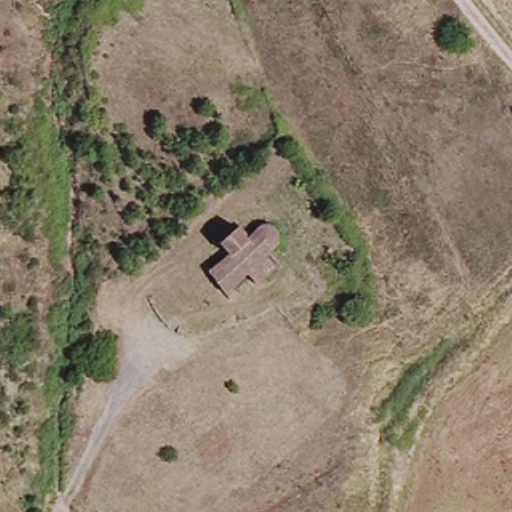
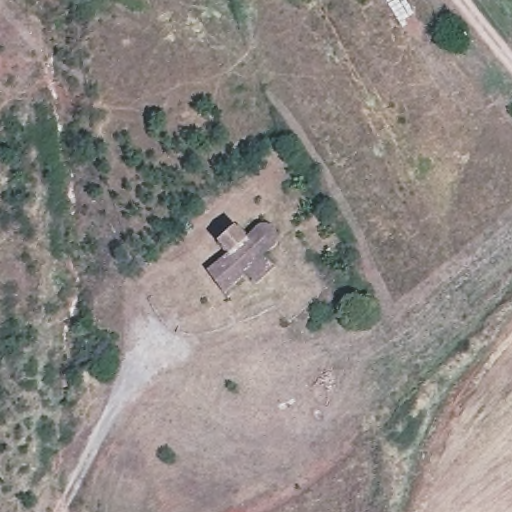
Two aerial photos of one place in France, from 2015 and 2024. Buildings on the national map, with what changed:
unchanged [(227,253),(216,239),(233,220),(242,234),(263,216),(283,235),(263,253),(282,269),(263,287),(250,267),(223,289),(208,270),(227,253)]

